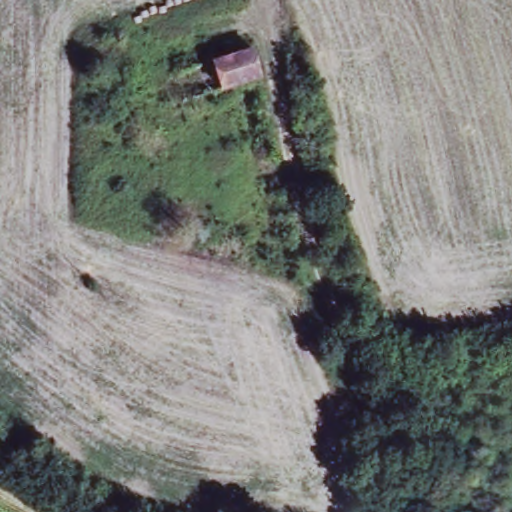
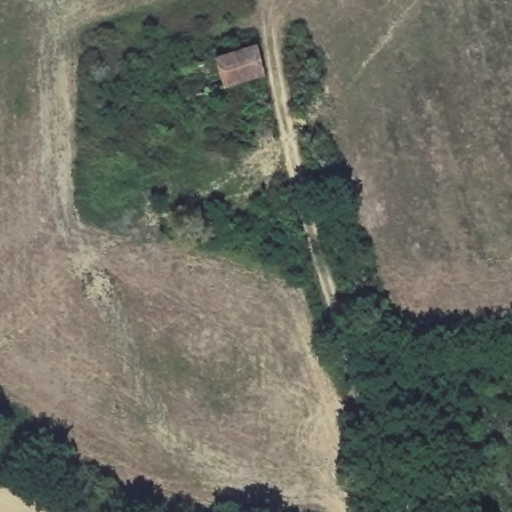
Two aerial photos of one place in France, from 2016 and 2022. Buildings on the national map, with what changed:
unchanged [(212,63),(232,57),(261,49),(268,79),(221,93),(212,63)]

